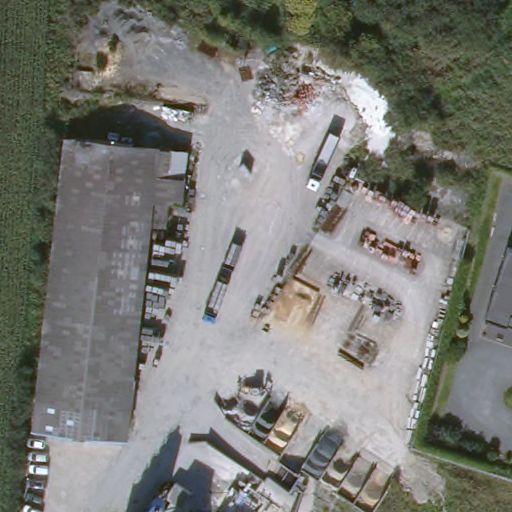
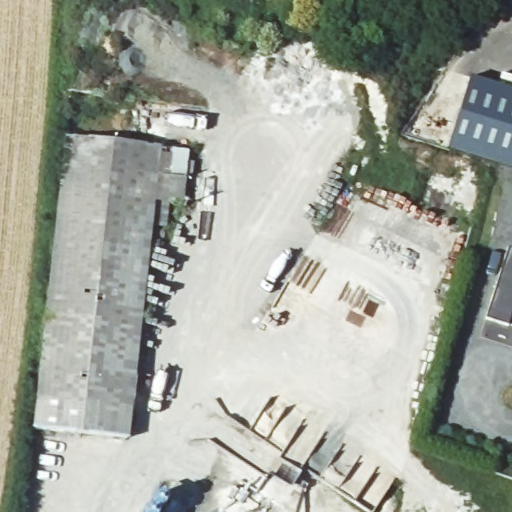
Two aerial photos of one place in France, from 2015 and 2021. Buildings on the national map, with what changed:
new [(470,77),(512,90),(512,169),(447,149),(470,77)]
unchanged [(183,142),(176,196),(164,196),(163,218),(148,217),(129,434),(39,426),(64,131),(183,142)]
unchanged [(509,248),(512,249),(512,326),(489,319),(509,248)]

